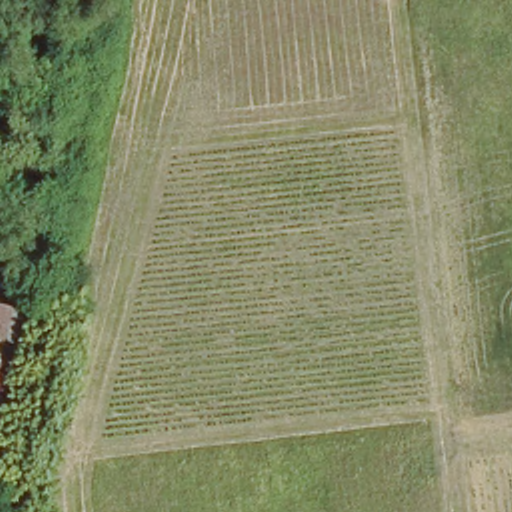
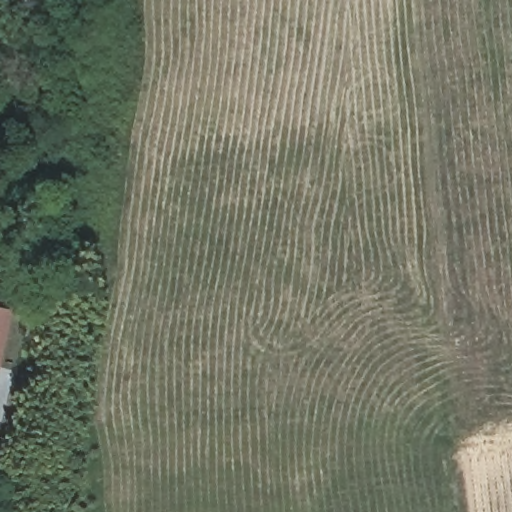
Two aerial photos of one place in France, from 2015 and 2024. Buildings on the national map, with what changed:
unchanged [(14,309),(7,336),(0,335),(0,307),(14,309)]
unchanged [(6,371),(0,396),(0,371),(6,371)]

